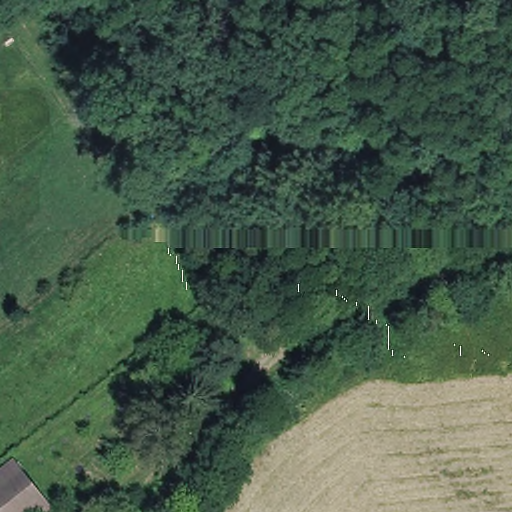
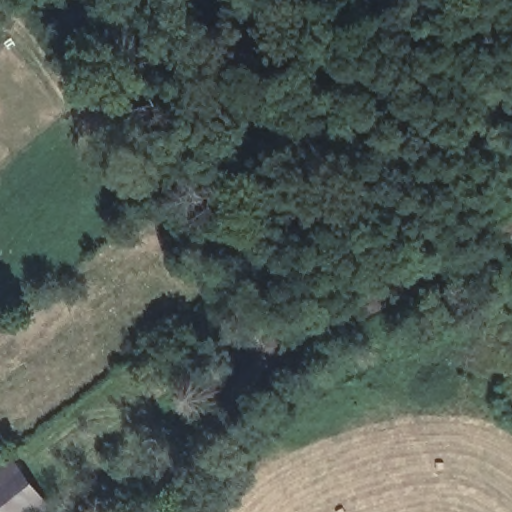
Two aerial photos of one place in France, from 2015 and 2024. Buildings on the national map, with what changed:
unchanged [(16,467),(25,477),(26,479),(40,498),(45,506),(38,512),(0,512),(0,480),(16,467)]

